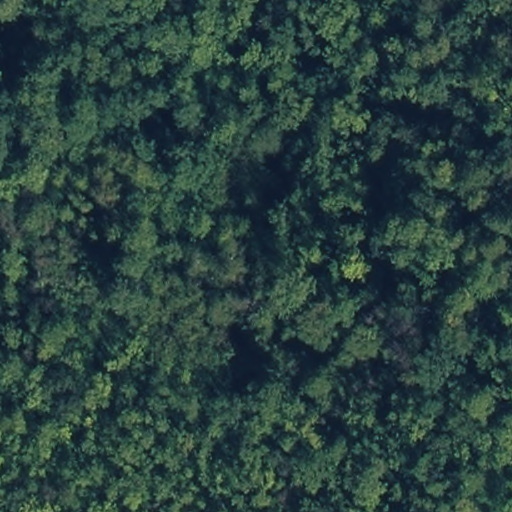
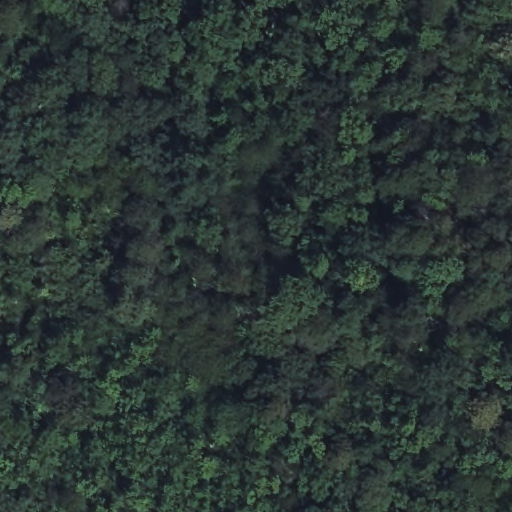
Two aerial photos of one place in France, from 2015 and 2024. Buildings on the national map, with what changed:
[]

